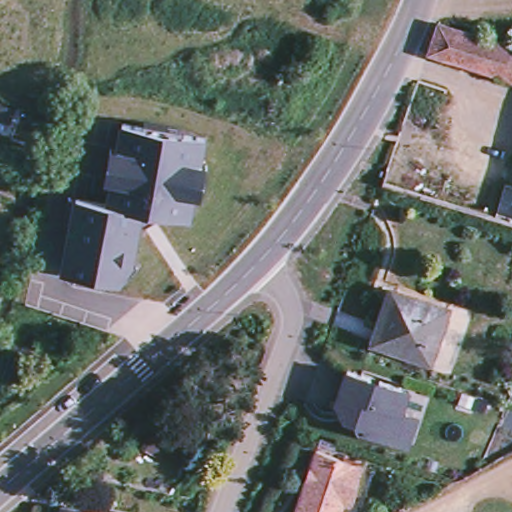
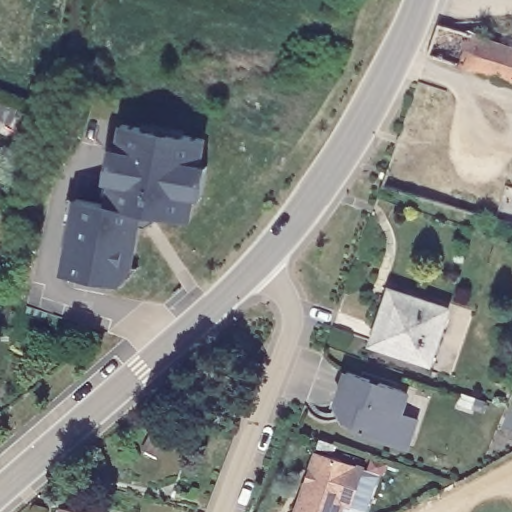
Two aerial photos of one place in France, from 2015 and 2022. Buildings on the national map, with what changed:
unchanged [(440,17),(512,42),(512,78),(428,52),(440,17)]
unchanged [(73,200),(108,205),(113,183),(103,181),(109,146),(116,147),(120,124),(205,139),(202,165),(208,165),(205,199),(197,197),(193,222),(142,214),(135,269),(122,286),(60,273),(73,200)]
unchanged [(444,303),(432,340),(429,337),(422,357),(371,340),(390,284),(444,303)]
unchanged [(407,445),(393,440),(358,429),(355,422),(345,418),(336,401),(347,369),(370,377),(370,380),(379,382),(380,380),(405,388),(398,410),(408,413),(417,416),(407,445)]
unchanged [(340,512),(296,512),(317,455),(363,471),(357,491),(351,510),(342,505),(340,512)]
unchanged [(105,512),(63,512),(65,505),(105,511),(105,512)]

